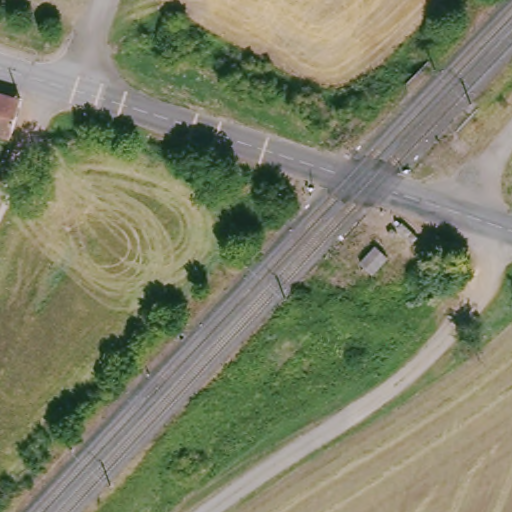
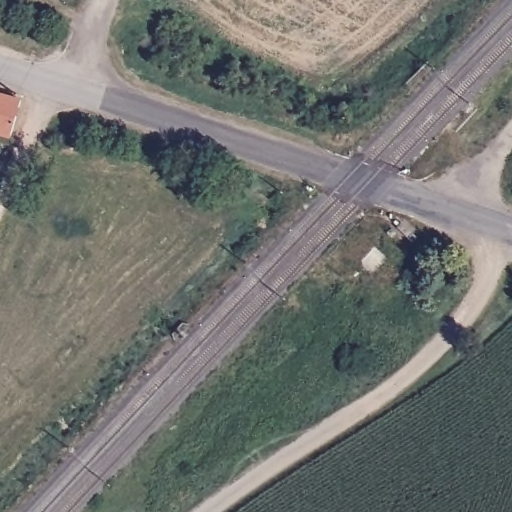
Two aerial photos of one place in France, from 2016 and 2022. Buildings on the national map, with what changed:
unchanged [(1,136),(0,136),(0,95),(18,100),(1,136)]

